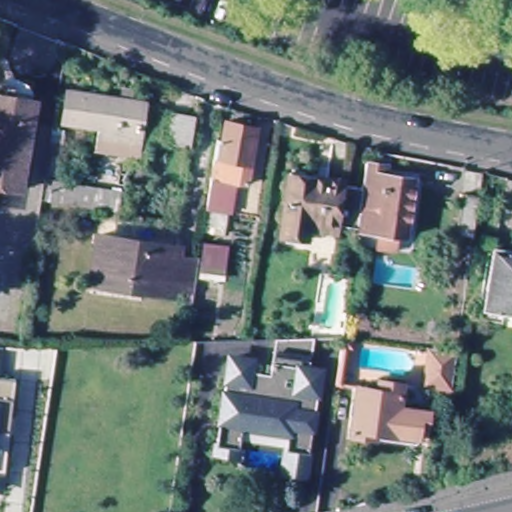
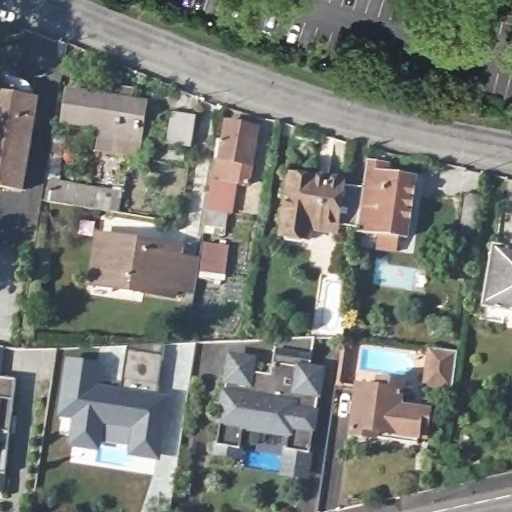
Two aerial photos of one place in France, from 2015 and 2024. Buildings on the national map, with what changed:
unchanged [(105,127),(67,121),(71,93),(126,101),(129,85),(141,87),(140,103),(146,104),(142,132),(147,132),(142,162),(115,157),(100,154),(105,127)]
unchanged [(26,193),(26,196),(0,192),(0,101),(37,107),(26,193)]
unchanged [(190,145),(167,142),(171,112),(194,115),(190,145)]
unchanged [(204,224),(205,209),(214,151),(220,152),(225,118),(256,123),(251,187),(236,186),(231,212),(226,212),(225,227),(204,224)]
unchanged [(390,176),(389,185),(420,190),(411,248),(362,242),(362,237),(367,199),(370,173),(390,176)]
unchanged [(48,178),(109,186),(106,204),(62,199),(45,197),(48,178)]
unchanged [(342,234),(341,237),(315,234),(312,252),(285,248),(293,189),(295,183),(320,187),(348,191),(347,195),(367,199),(362,237),(342,234)]
unchanged [(473,231),(455,228),(462,188),(478,191),(473,231)]
unchanged [(99,233),(181,244),(180,254),(199,257),(201,242),(226,244),(224,270),(197,267),(196,274),(195,288),(174,285),(172,295),(92,285),(95,271),(99,233)]
unchanged [(512,256),(512,319),(490,315),(498,254),(512,256)]
unchanged [(285,473),(289,450),(291,432),(245,426),(242,450),(241,458),(220,455),(218,455),(220,447),(230,362),(232,360),(235,358),(255,360),(253,372),(272,375),(277,338),(288,338),(315,337),(310,367),(318,368),(322,373),(317,413),(313,413),(311,427),(315,428),(312,453),(309,476),(285,473)]
new [(177,344),(196,345),(189,391),(171,388),(177,344)]
unchanged [(457,349),(455,369),(452,386),(425,382),(430,345),(457,349)]
new [(65,358),(99,360),(100,353),(110,354),(103,383),(165,395),(162,412),(165,413),(160,460),(127,455),(129,446),(102,442),(101,451),(70,446),(71,421),(58,418),(65,358)]
unchanged [(365,388),(383,391),(385,382),(409,386),(406,411),(435,417),(431,439),(423,438),(422,445),(356,436),(365,388)]

